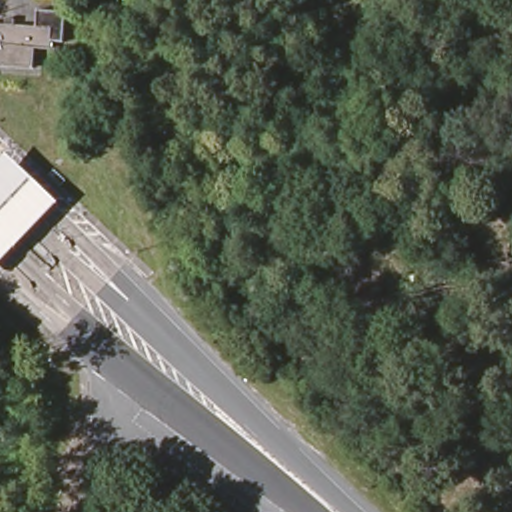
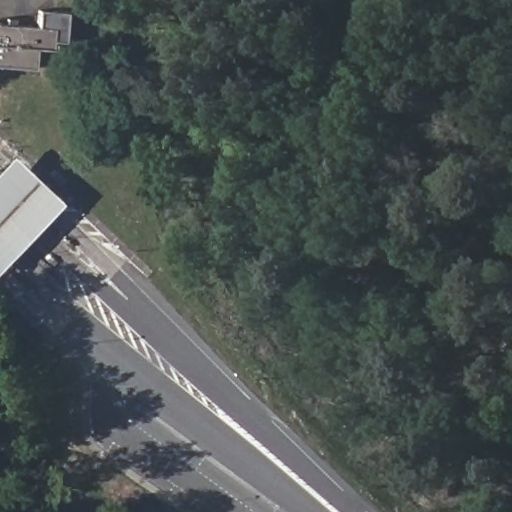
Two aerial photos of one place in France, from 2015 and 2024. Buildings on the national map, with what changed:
unchanged [(56,41),(55,50),(39,48),(36,69),(0,66),(0,21),(42,26),(44,11),(72,15),(68,42),(56,41)]
unchanged [(0,272),(0,167),(2,164),(53,220),(0,272)]

